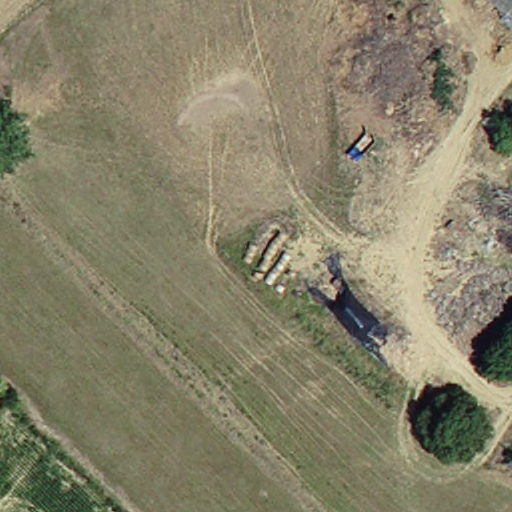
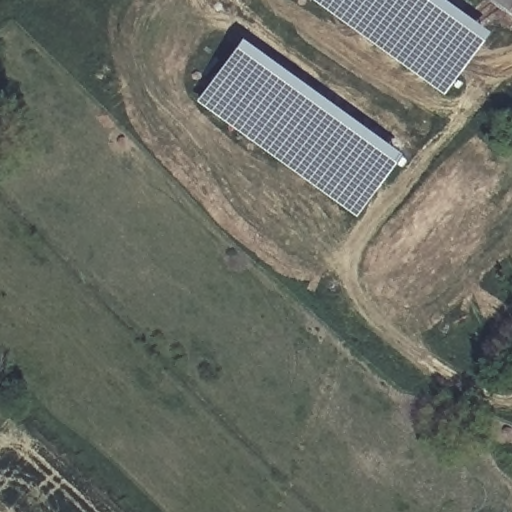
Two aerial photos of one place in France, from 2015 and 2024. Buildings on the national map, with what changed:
new [(441,97),(309,0),(441,0),(487,33),(441,97)]
unchanged [(512,19),(486,0),(512,0),(512,19)]
new [(355,218),(193,103),(237,39),(400,156),(355,218)]

